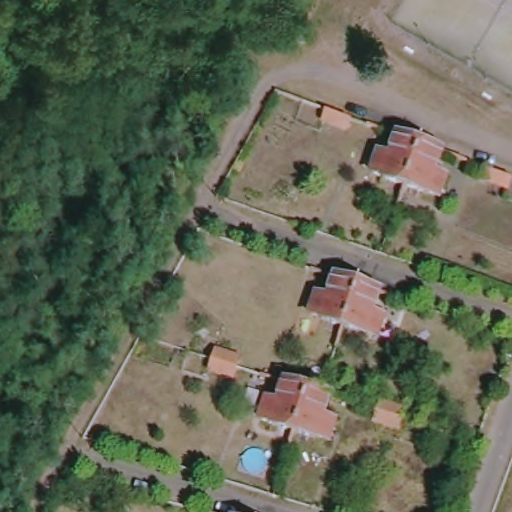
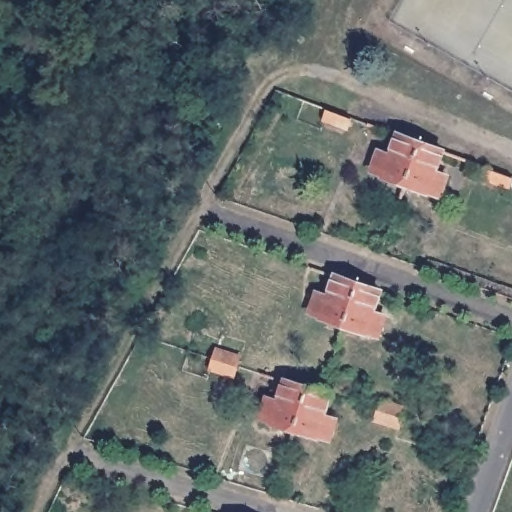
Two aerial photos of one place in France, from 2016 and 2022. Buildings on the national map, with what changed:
unchanged [(353,116),(349,126),(324,117),(329,107),(353,116)]
unchanged [(401,186),(376,176),(378,175),(368,171),(374,151),(386,155),(393,132),(416,142),(401,186)]
unchanged [(438,150),(430,172),(442,177),(434,196),(422,192),(422,194),(401,186),(416,142),(438,150)]
unchanged [(512,179),(509,186),(485,178),(489,167),(512,176),(512,179)]
unchanged [(334,320),(313,313),(314,311),(301,306),(308,287),(319,292),(327,270),(349,278),(334,320)]
unchanged [(372,287),(365,308),(376,311),(369,330),(358,327),(356,329),(334,320),(349,278),(372,287)]
unchanged [(209,367),(213,357),(217,346),(239,354),(236,365),(233,375),(209,367)]
unchanged [(290,428),(267,421),(268,419),(256,415),(261,396),(274,399),(281,380),(302,387),(290,428)]
unchanged [(316,391),(326,395),(321,415),(333,419),(326,438),(314,435),(313,436),(290,428),(302,387),(316,391)]
unchanged [(376,419),(379,410),(382,400),(407,408),(404,418),(401,426),(376,419)]

